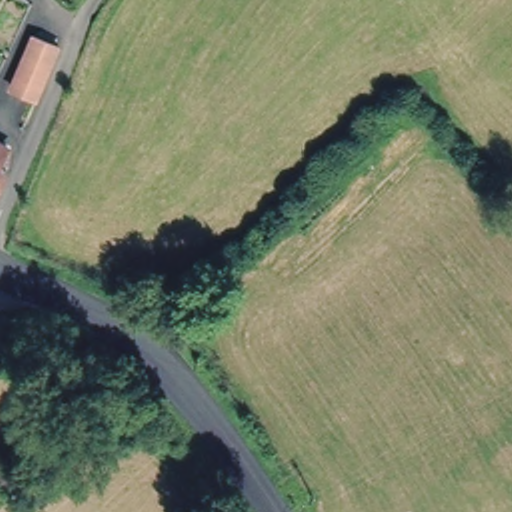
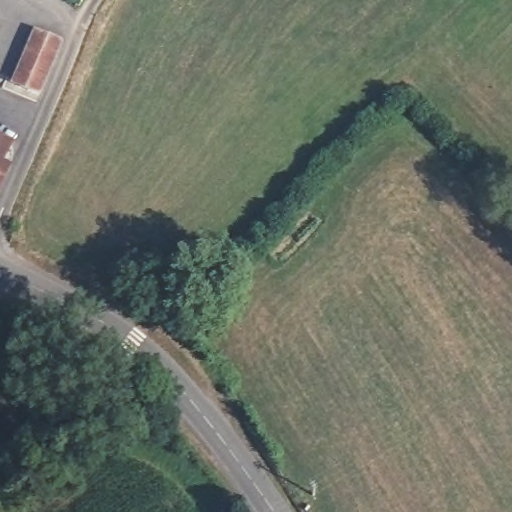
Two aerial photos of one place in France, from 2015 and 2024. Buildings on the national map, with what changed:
unchanged [(9,86),(30,37),(54,47),(34,97),(9,86)]
unchanged [(0,172),(0,156),(8,160),(0,172)]
unchanged [(0,197),(0,178),(6,182),(0,197)]

